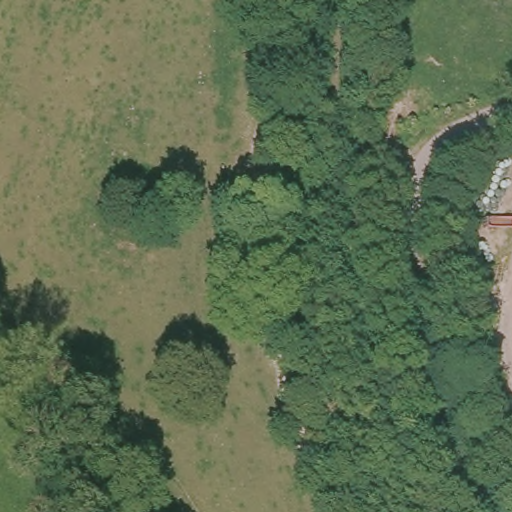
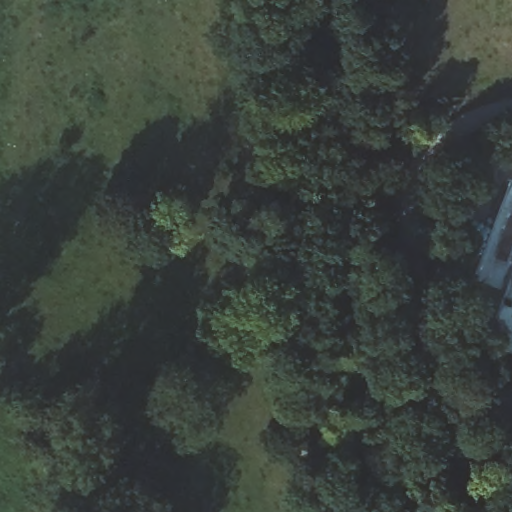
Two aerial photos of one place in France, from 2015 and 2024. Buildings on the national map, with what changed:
[]

